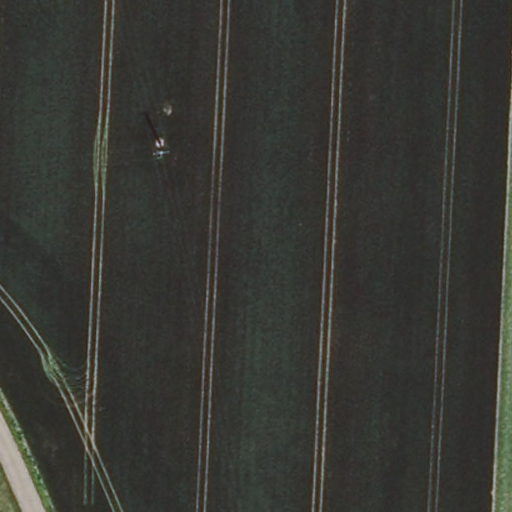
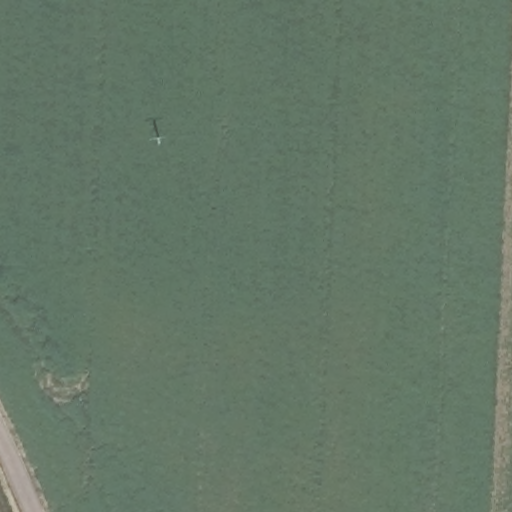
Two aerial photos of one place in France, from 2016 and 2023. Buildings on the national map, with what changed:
[]

